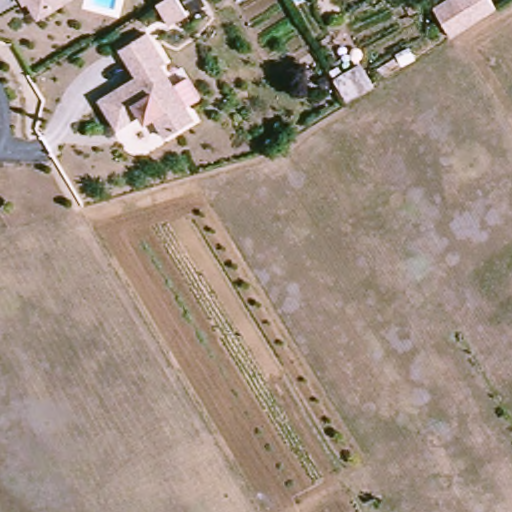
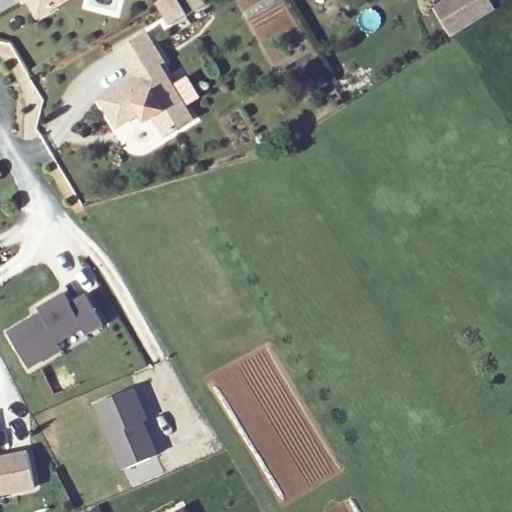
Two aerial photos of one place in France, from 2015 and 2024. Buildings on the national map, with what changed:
unchanged [(57,4),(38,15),(29,0),(58,0),(57,4)]
unchanged [(186,18),(171,28),(156,6),(167,0),(175,0),(186,18)]
unchanged [(429,6),(440,0),(486,0),(492,10),(451,37),(448,38),(429,6)]
unchanged [(157,59),(154,61),(188,115),(159,133),(147,113),(139,118),(134,111),(111,124),(96,96),(132,75),(116,45),(141,32),(157,59)]
new [(7,332),(41,312),(38,306),(64,291),(69,300),(86,290),(106,326),(89,337),(85,330),(61,344),(65,350),(30,371),(7,332)]
new [(152,421),(147,423),(160,453),(121,470),(94,404),(137,387),(152,421)]
new [(36,488),(1,495),(0,493),(0,456),(29,451),(36,488)]
new [(182,512),(172,512),(180,508),(182,512)]

